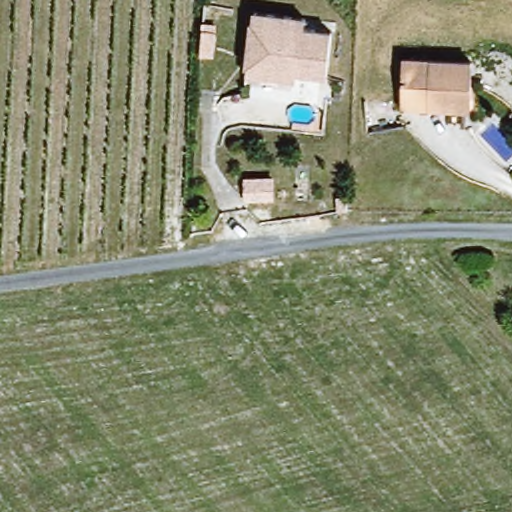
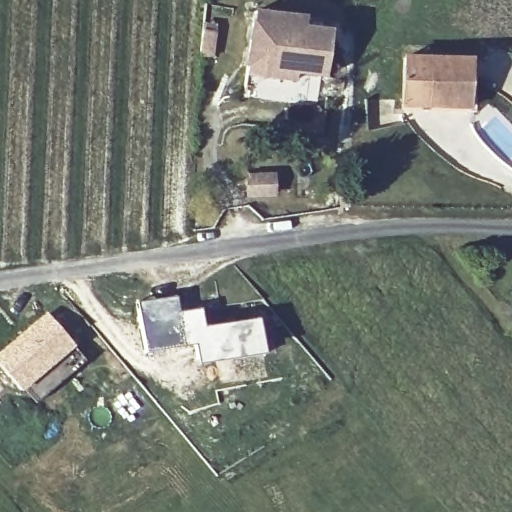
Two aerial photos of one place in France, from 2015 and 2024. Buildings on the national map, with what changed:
unchanged [(327,70),(297,68),(296,75),(247,73),(250,14),(299,16),(299,25),(329,27),(327,70)]
unchanged [(191,56),(179,55),(180,29),(193,30),(191,56)]
unchanged [(470,107),(404,106),(406,68),(406,57),(434,57),(471,57),(470,107)]
unchanged [(253,187),(227,189),(225,170),(252,169),(253,187)]
unchanged [(334,206),(327,206),(328,191),(335,192),(334,206)]
new [(180,306),(165,309),(164,301),(139,306),(137,299),(178,291),(180,306)]
new [(267,340),(199,354),(197,341),(148,351),(139,306),(164,301),(165,309),(203,301),(207,322),(261,310),(267,340)]
new [(74,343),(20,387),(0,362),(0,352),(49,315),(74,343)]

